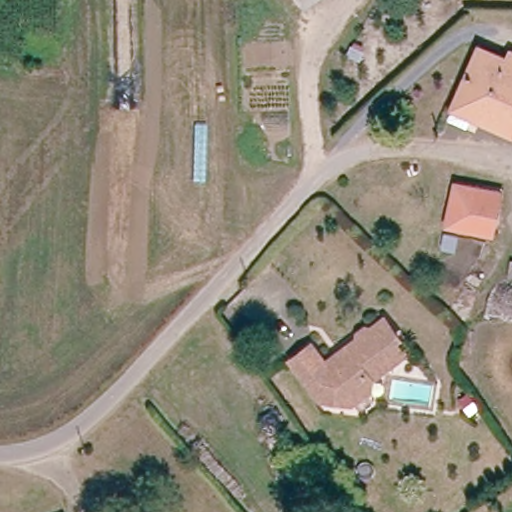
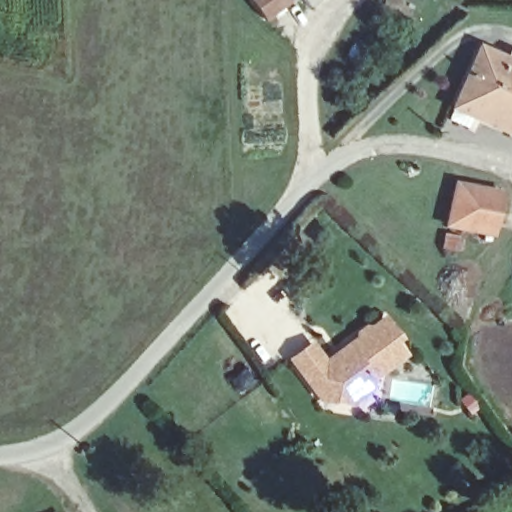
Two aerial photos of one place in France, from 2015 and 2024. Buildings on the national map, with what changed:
new [(265,20),(250,0),(289,0),(291,1),(265,20)]
unchanged [(304,0),(310,0),(306,3),(304,0)]
unchanged [(478,46),(512,61),(512,134),(450,108),(478,46)]
unchanged [(452,183),(497,194),(487,236),(442,225),(452,183)]
unchanged [(453,236),(451,251),(437,249),(440,234),(453,236)]
unchanged [(306,384),(285,355),(305,340),(318,359),(343,340),(352,334),(352,330),(361,324),(365,324),(378,315),(392,334),(388,338),(397,351),(365,375),(363,385),(345,399),(335,397),(313,394),(306,384)]

